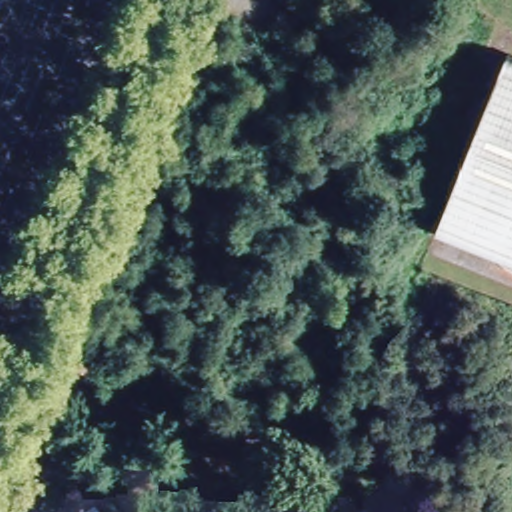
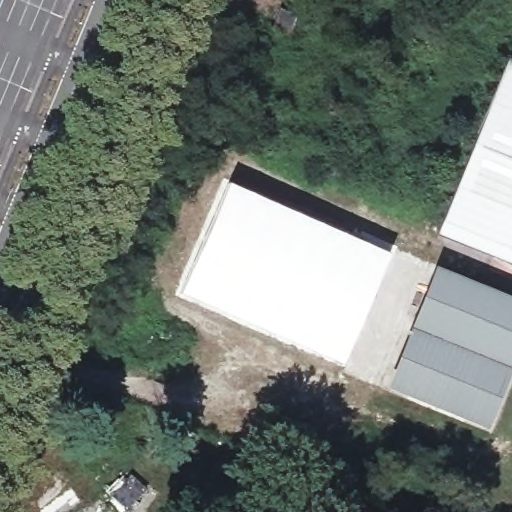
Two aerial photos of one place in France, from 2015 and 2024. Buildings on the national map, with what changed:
unchanged [(300,2),(294,0),(301,0),(300,2)]
unchanged [(288,40),(271,33),(283,7),(300,15),(288,40)]
unchanged [(512,55),(512,263),(437,232),(511,55),(512,55)]
new [(228,181),(390,252),(342,365),(178,293),(228,181)]
new [(436,272),(512,304),(512,357),(485,422),(391,382),(436,272)]

